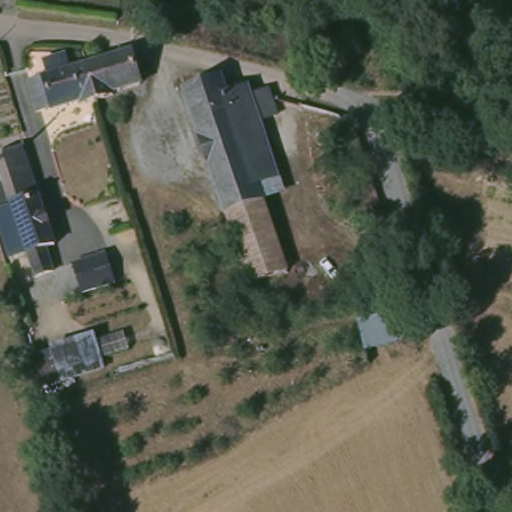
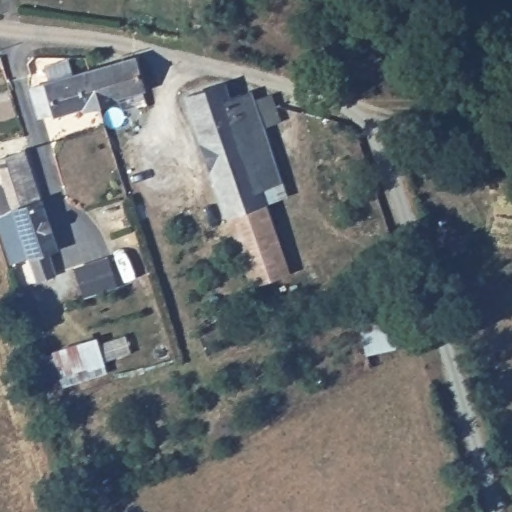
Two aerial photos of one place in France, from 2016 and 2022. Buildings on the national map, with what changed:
unchanged [(129,50),(133,56),(141,84),(117,91),(118,96),(99,102),(86,63),(105,57),(129,50)]
unchanged [(81,108),(79,101),(51,110),(49,105),(39,109),(30,80),(45,76),(40,59),(66,51),(71,68),(86,63),(99,102),(81,108)]
unchanged [(259,160),(216,174),(190,93),(218,79),(226,77),(234,89),(255,90),(260,104),(274,99),(283,123),(268,129),(283,174),(266,181),(259,160)]
unchanged [(23,150),(39,195),(57,245),(43,250),(51,273),(34,280),(26,257),(9,264),(0,238),(0,157),(10,154),(23,150)]
unchanged [(216,174),(259,160),(266,181),(272,199),(229,212),(216,174)]
unchanged [(272,199),(286,239),(243,252),(232,221),(229,212),(272,199)]
unchanged [(295,266),(253,280),(243,252),(286,239),(295,266)]
unchanged [(115,280),(81,290),(74,268),(72,262),(106,251),(107,255),(115,280)]
unchanged [(95,377),(51,392),(39,357),(82,340),(95,377)]

